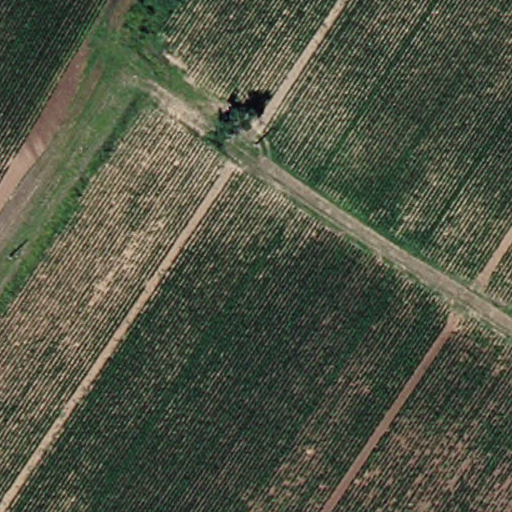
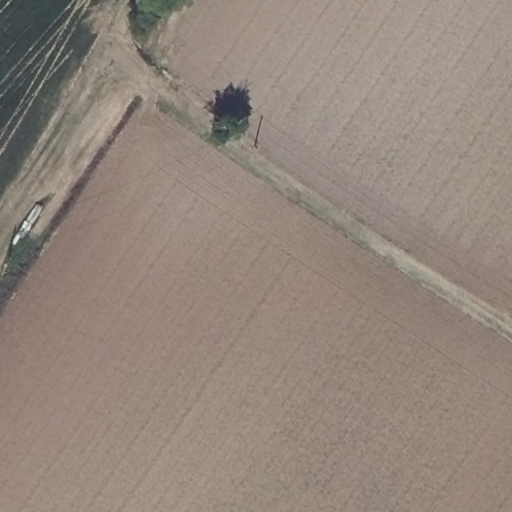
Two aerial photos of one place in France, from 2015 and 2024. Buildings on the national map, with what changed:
[]

